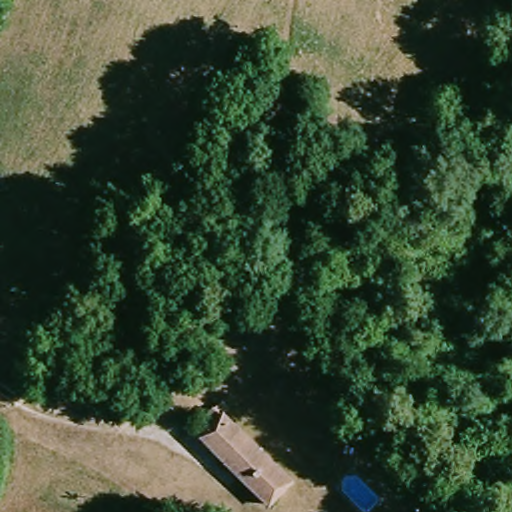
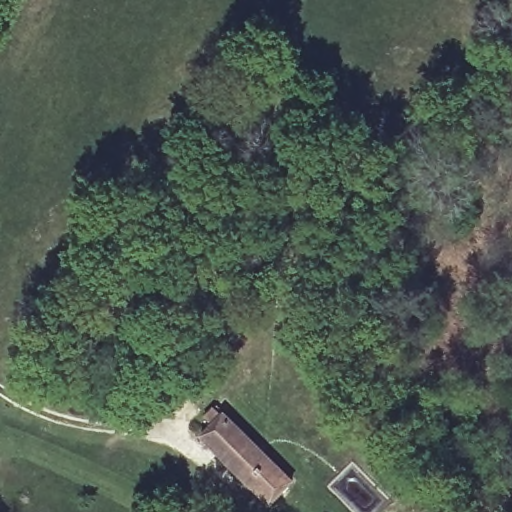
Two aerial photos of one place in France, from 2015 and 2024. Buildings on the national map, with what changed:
unchanged [(222,420),(225,417),(294,484),(272,508),(202,441),(214,430),(206,422),(215,412),(222,420)]

